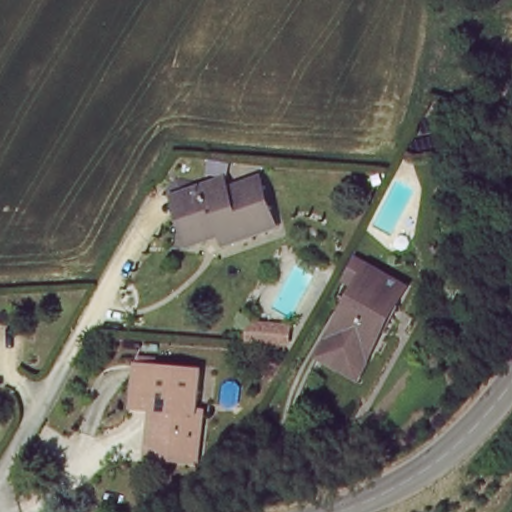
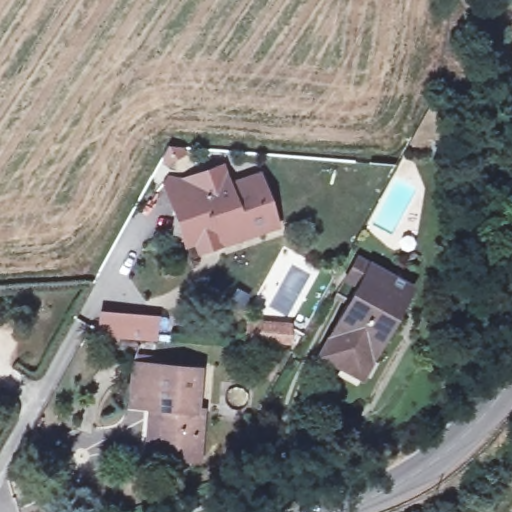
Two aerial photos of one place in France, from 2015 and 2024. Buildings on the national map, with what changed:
unchanged [(274,197),(270,222),(269,223),(249,222),(248,232),(209,230),(209,238),(186,235),(187,227),(173,225),(175,207),(177,191),(194,192),(195,182),(239,184),(240,177),(266,180),(262,196),(274,197)]
unchanged [(353,301),(338,293),(359,258),(411,289),(372,362),(330,340),(353,301)]
new [(159,316),(157,342),(97,337),(99,311),(159,316)]
unchanged [(152,457),(157,404),(130,402),(134,361),(198,367),(195,408),(206,409),(204,436),(186,435),(183,459),(152,457)]

